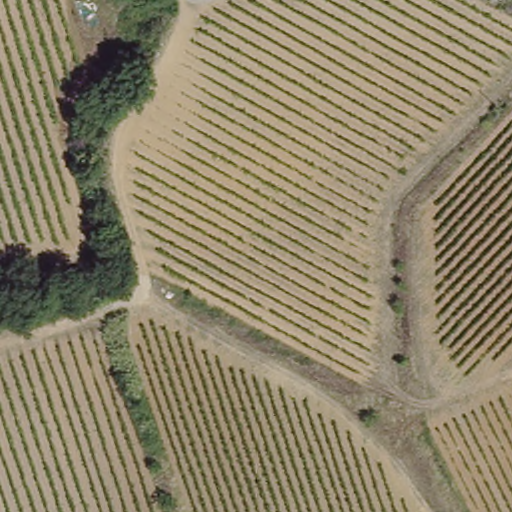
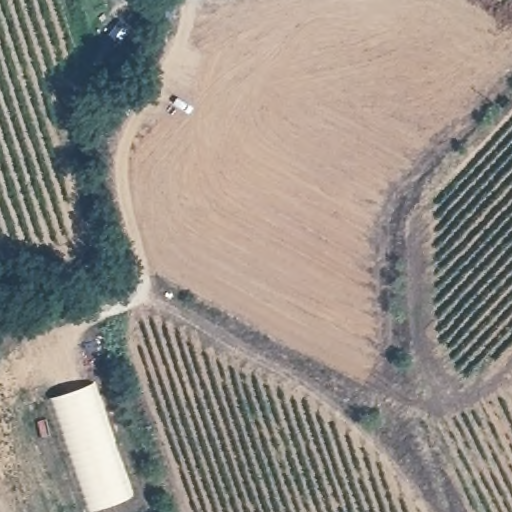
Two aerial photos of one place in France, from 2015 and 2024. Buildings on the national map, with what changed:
new [(133,497),(91,512),(88,512),(49,397),(95,382),(133,497)]

